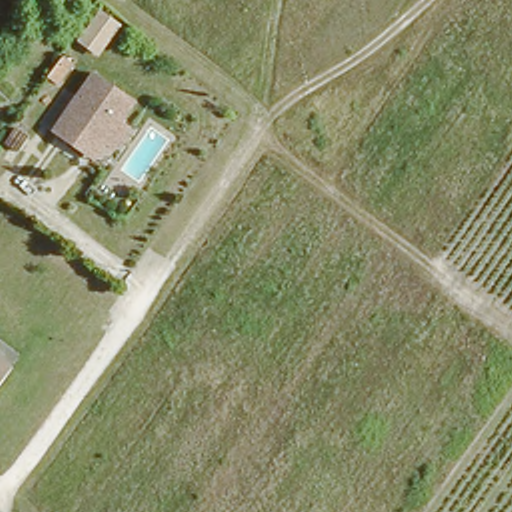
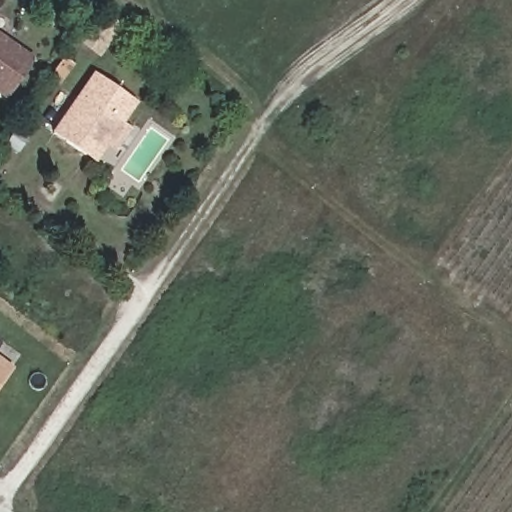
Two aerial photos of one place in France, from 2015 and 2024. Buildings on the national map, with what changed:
new [(0,97),(0,34),(34,58),(5,100),(0,97)]
unchanged [(128,99),(98,141),(83,144),(76,154),(46,132),(89,71),(128,99)]
unchanged [(0,376),(0,363),(6,368),(0,376)]

